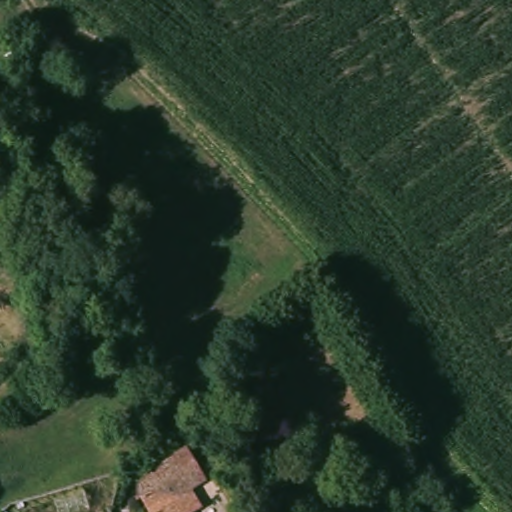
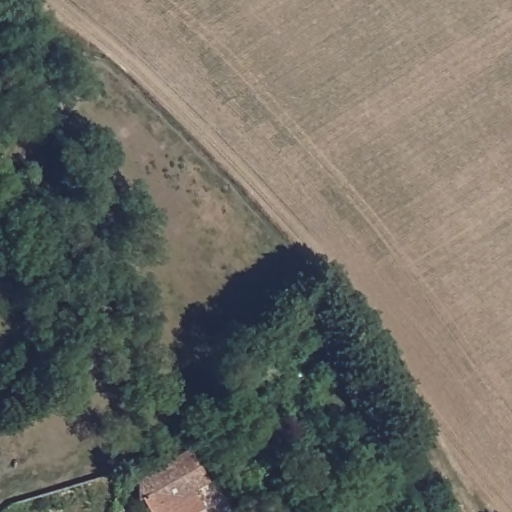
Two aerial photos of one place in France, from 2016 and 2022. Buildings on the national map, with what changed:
unchanged [(140,472),(146,469),(191,442),(209,477),(194,486),(205,505),(194,512),(148,512),(152,509),(142,492),(139,495),(140,472)]

